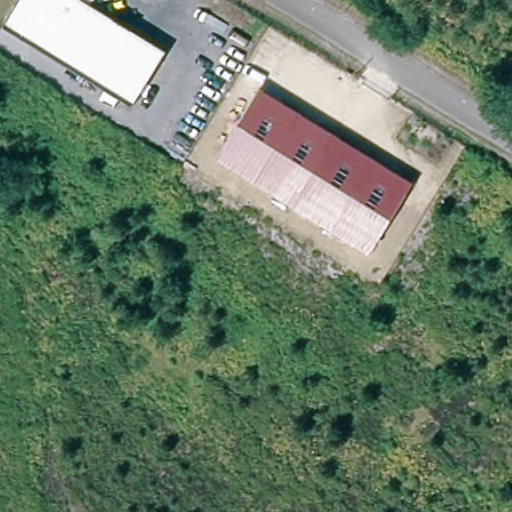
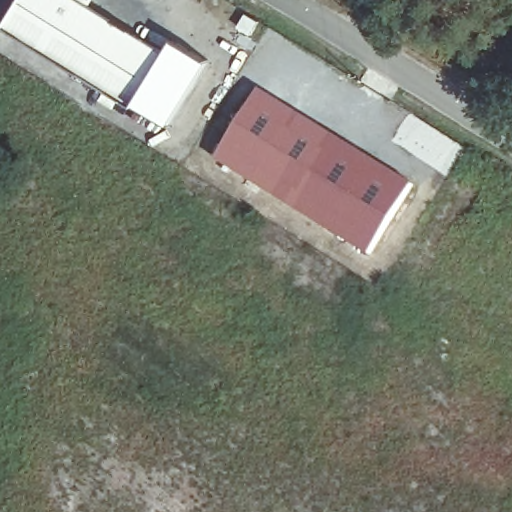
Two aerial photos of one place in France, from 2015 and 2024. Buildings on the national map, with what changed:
unchanged [(18,0),(86,0),(167,50),(132,106),(2,26),(18,0)]
new [(167,50),(175,40),(209,62),(169,127),(132,106),(167,50)]
unchanged [(412,184),(368,252),(216,156),(260,87),(412,184)]

